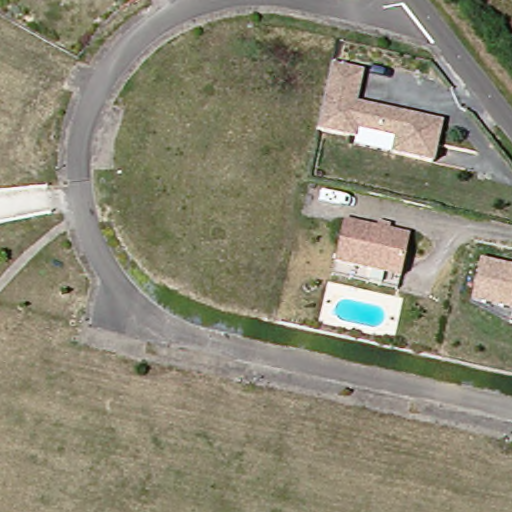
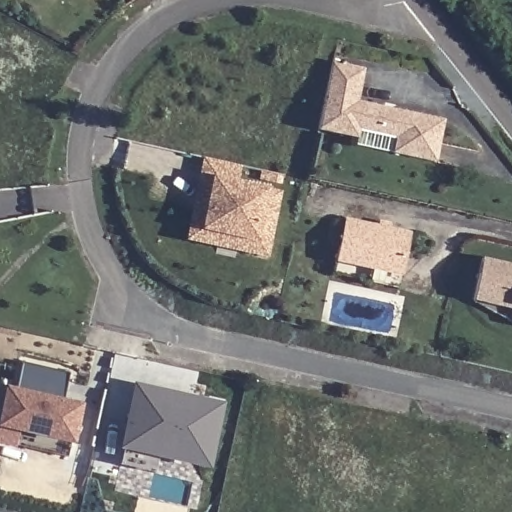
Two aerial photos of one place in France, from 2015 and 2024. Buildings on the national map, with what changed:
unchanged [(364,70),(357,102),(443,122),(434,165),(392,155),(395,139),(358,131),(356,139),(317,130),(333,62),(364,70)]
new [(208,157),(241,165),(236,184),(216,180),(205,229),(269,242),(266,255),(191,238),(208,157)]
new [(216,180),(236,184),(280,194),(269,242),(205,229),(216,180)]
unchanged [(346,215),(412,230),(403,266),(374,258),(373,265),(336,256),(346,215)]
unchanged [(373,265),(374,258),(403,266),(399,283),(334,268),(336,256),(373,265)]
unchanged [(512,312),(474,303),(484,261),(512,267),(512,312)]
new [(71,441),(55,437),(12,427),(8,442),(0,440),(0,387),(7,388),(15,391),(23,360),(70,371),(63,402),(79,405),(71,441)]
new [(138,390),(218,408),(206,465),(125,446),(138,390)]

